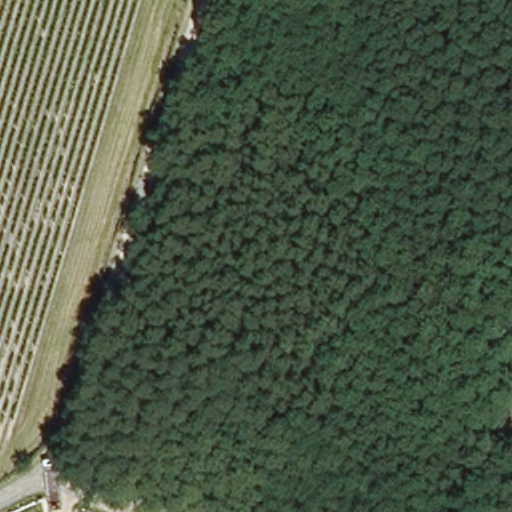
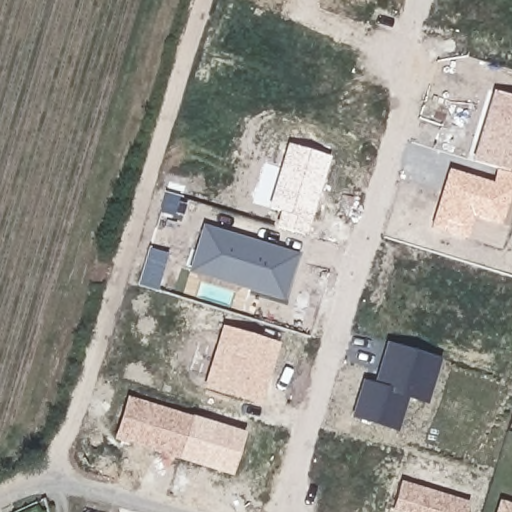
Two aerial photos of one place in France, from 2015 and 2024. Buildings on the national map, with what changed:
new [(512,194),(502,226),(472,216),(465,239),(428,227),(447,169),(492,183),(496,167),(471,160),(492,91),(512,97),(512,194)]
new [(329,156),(305,235),(275,226),(280,211),(267,207),(287,144),(329,156)]
new [(284,302),(187,272),(202,224),(297,254),(284,302)]
new [(278,344),(260,405),(202,388),(221,326),(278,344)]
new [(439,360),(426,404),(406,398),(396,432),(350,418),(362,380),(374,383),(386,343),(439,360)]
new [(231,477),(113,440),(126,396),(245,433),(231,477)]
new [(465,512),(398,512),(392,510),(400,481),(467,502),(465,512)]
new [(498,500),(512,504),(512,512),(495,512),(498,500)]

